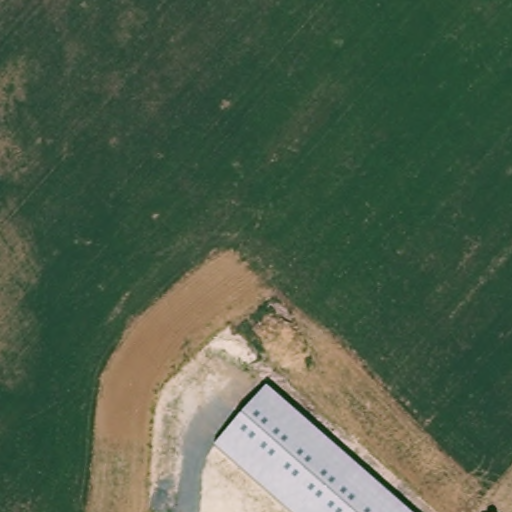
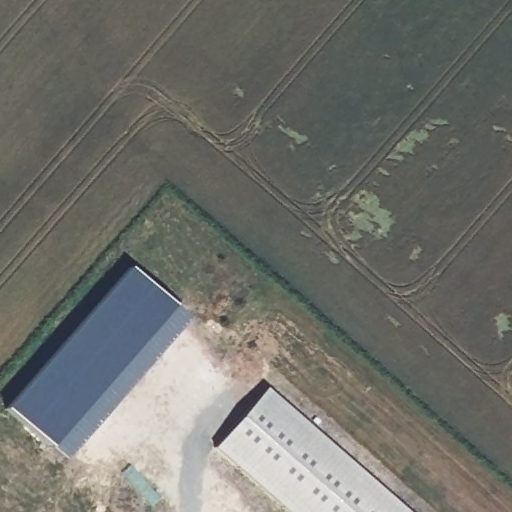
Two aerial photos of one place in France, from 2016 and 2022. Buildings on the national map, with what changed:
new [(187,319),(63,461),(4,408),(128,268),(187,319)]
unchanged [(264,389),(406,512),(285,512),(213,449),(264,389)]

